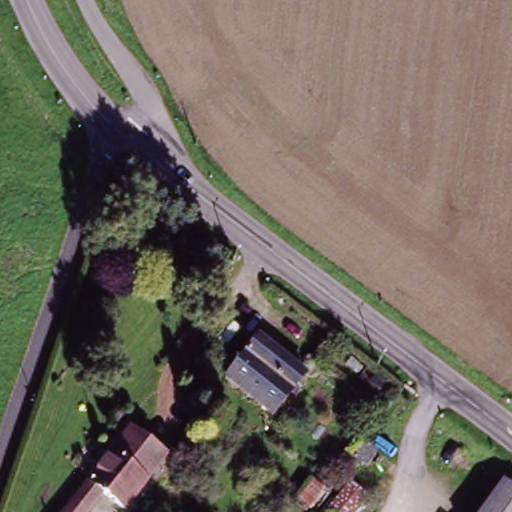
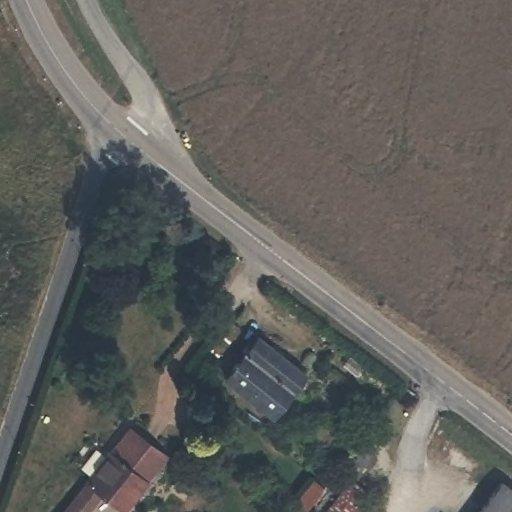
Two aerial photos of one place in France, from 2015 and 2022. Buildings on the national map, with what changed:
unchanged [(255,336),(305,378),(274,417),(222,373),(255,336)]
unchanged [(121,426),(143,443),(105,493),(97,490),(92,497),(76,486),(121,426)]
unchanged [(512,492),(512,512),(473,512),(495,480),(512,492)]
unchanged [(80,512),(56,512),(76,486),(92,497),(80,512)]

